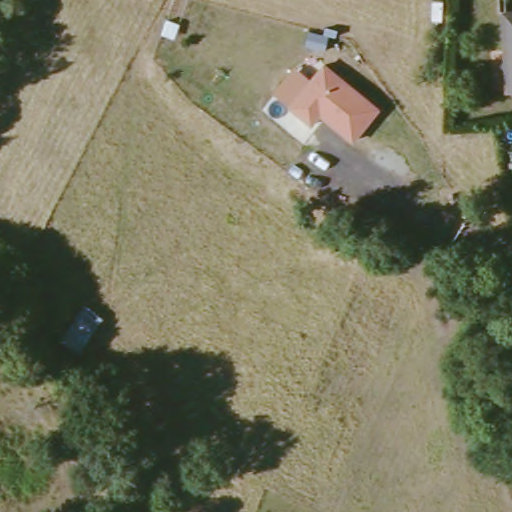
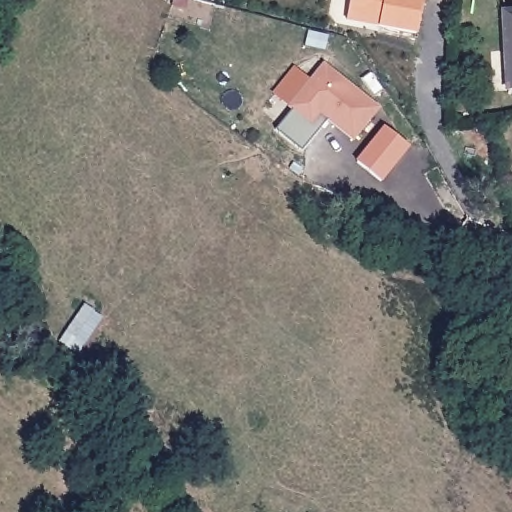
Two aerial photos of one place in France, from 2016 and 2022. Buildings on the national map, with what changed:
new [(345,22),(349,0),(424,0),(418,34),(345,22)]
unchanged [(512,12),(512,89),(504,90),(500,12),(512,12)]
unchanged [(382,109),(354,144),(320,118),(312,128),(289,110),(325,62),(382,109)]
new [(381,182),(355,162),(383,127),(410,147),(381,182)]
unchanged [(106,303),(99,313),(106,320),(79,357),(58,342),(92,294),(106,303)]

